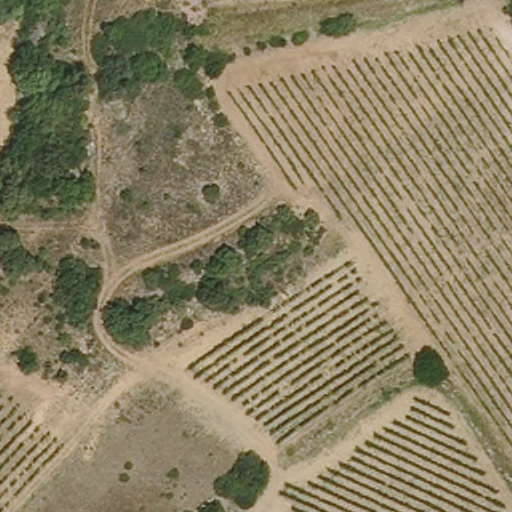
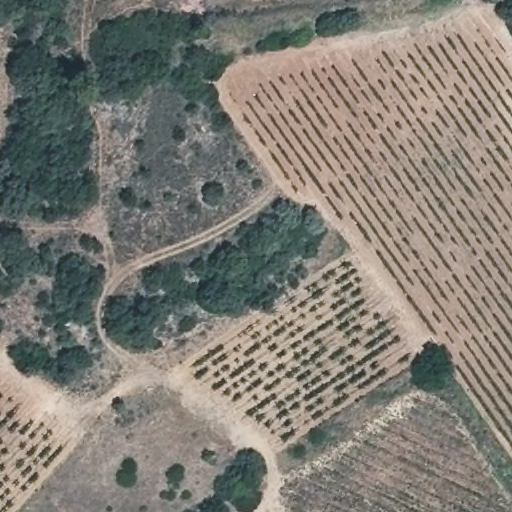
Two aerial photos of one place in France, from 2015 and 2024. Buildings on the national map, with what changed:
[]

